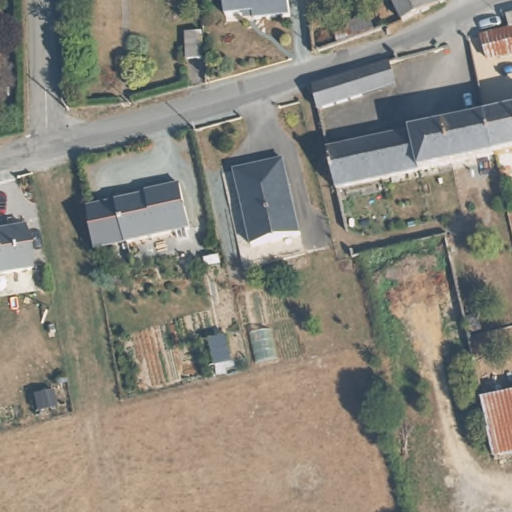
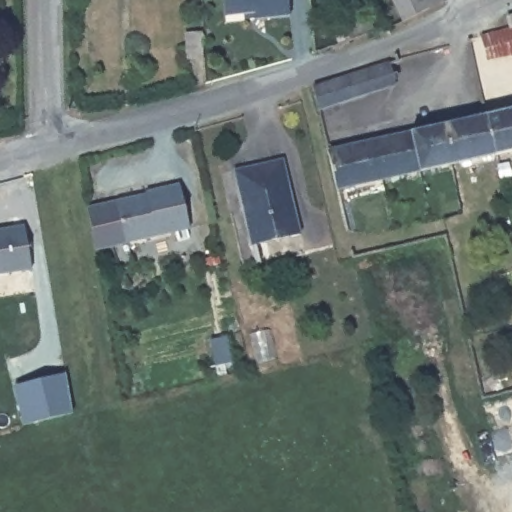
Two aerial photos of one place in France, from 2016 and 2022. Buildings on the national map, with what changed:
unchanged [(258,15),(254,15),(230,17),(228,0),(292,0),(294,18),(258,21),(258,15)]
unchanged [(391,0),(441,0),(401,19),(391,0)]
unchanged [(332,27),(368,14),(374,30),(338,44),(332,27)]
unchanged [(480,35),(512,26),(512,52),(487,59),(480,35)]
unchanged [(203,60),(185,61),(184,32),(202,33),(203,60)]
unchanged [(389,59),(395,82),(318,105),(314,81),(389,59)]
unchanged [(512,147),(493,151),(483,113),(512,107),(512,147)]
unchanged [(483,113),(493,151),(336,189),(327,150),(483,113)]
unchanged [(295,232),(246,242),(231,167),(280,156),(295,232)]
unchanged [(137,195),(137,197),(152,193),(151,190),(182,182),(192,226),(128,241),(118,200),(137,195)]
unchanged [(23,226),(30,269),(0,274),(0,230),(23,226)]
new [(66,372),(74,413),(23,426),(13,386),(66,372)]

